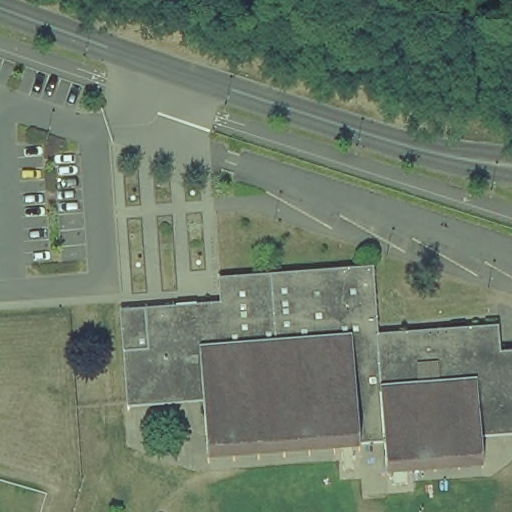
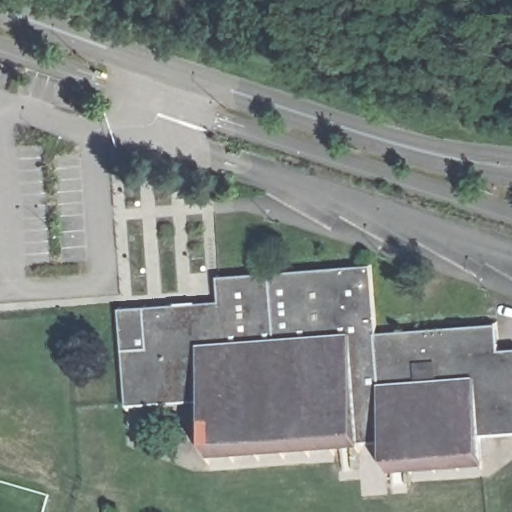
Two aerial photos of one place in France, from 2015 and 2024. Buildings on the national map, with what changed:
unchanged [(154,353),(151,311),(182,310),(183,321),(228,318),(227,281),(379,271),(384,349),(407,348),(407,335),(507,327),(508,356),(512,356),(512,436),(487,438),(488,462),(390,469),(390,444),(211,457),(208,396),(133,401),(129,355),(154,353)]

